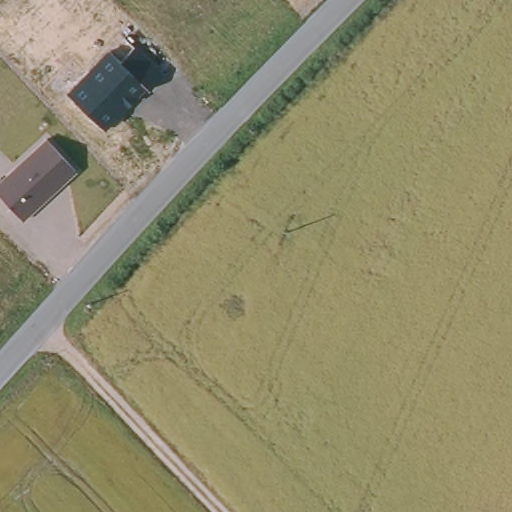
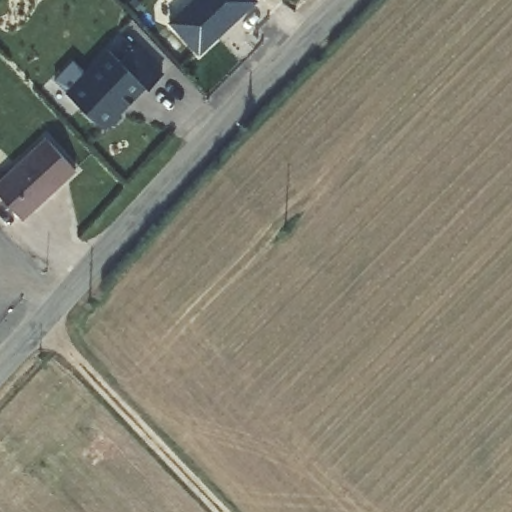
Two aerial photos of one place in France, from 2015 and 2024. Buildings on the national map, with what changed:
new [(198,55),(167,23),(193,0),(256,0),(198,55)]
unchanged [(118,63),(139,40),(159,59),(140,79),(147,87),(110,124),(108,122),(103,127),(65,91),(106,50),(118,63)]
unchanged [(75,168),(22,219),(0,195),(0,183),(47,137),(75,168)]

